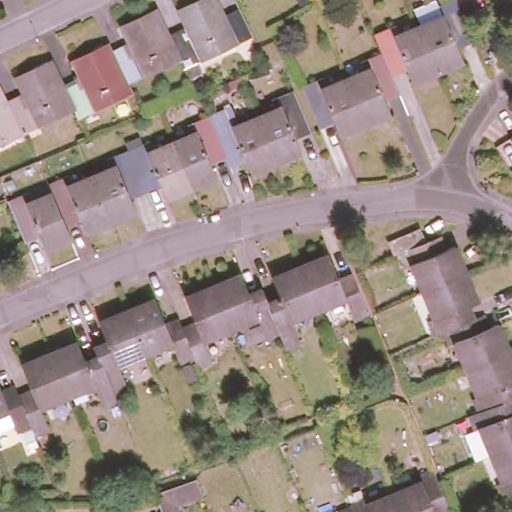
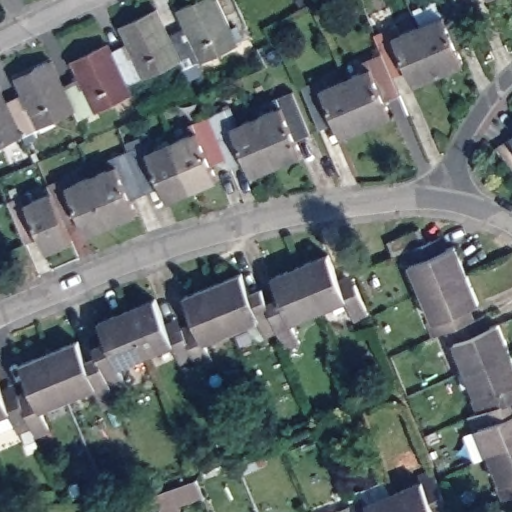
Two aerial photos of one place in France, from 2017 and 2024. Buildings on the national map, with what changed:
unchanged [(178,8),(195,0),(217,0),(237,41),(184,66),(180,57),(168,32),(181,27),(186,25),(178,8)]
unchanged [(457,49),(462,63),(438,73),(419,27),(437,20),(433,10),(440,7),(455,1),(472,42),(457,49)]
unchanged [(121,25),(157,7),(168,32),(180,57),(126,83),(110,50),(124,44),(129,42),(121,25)]
unchanged [(390,29),(396,26),(400,35),(419,27),(438,73),(412,83),(408,70),(394,76),(384,53),(376,34),(390,29)]
unchanged [(75,77),(80,75),(72,58),(106,41),(110,50),(126,83),(130,92),(78,116),(74,107),(63,83),(75,77)]
unchanged [(367,71),(363,62),(368,60),(384,53),(394,76),(401,93),(385,101),(390,115),(366,125),(347,80),(367,71)]
unchanged [(14,74),(51,57),(63,83),(74,107),(21,132),(5,99),(17,94),(22,91),(14,74)]
unchanged [(335,122),(319,128),(302,87),(318,81),(324,79),(327,88),(347,80),(366,125),(340,136),(335,122)]
unchanged [(5,99),(21,132),(0,142),(0,89),(5,99)]
unchanged [(311,131),(296,138),(302,152),(278,162),(258,116),(277,108),(273,100),(279,97),(294,92),(311,131)]
unchanged [(246,160),(229,167),(226,159),(213,126),(229,120),(234,118),(237,125),(258,116),(278,162),(251,173),(246,160)]
unchanged [(216,179),(191,189),(172,143),(192,135),(188,126),(194,124),(209,118),(213,126),(226,159),(211,164),(216,179)]
unchanged [(512,135),(512,143),(509,137),(512,135)]
unchanged [(160,186),(145,192),(129,151),(144,145),(149,143),(153,151),(172,143),(191,189),(165,200),(160,186)]
unchanged [(135,212),(111,222),(92,176),(111,169),(107,159),(113,157),(129,151),(145,192),(130,198),(135,212)]
unchanged [(63,178),(69,176),(73,184),(92,176),(111,222),(86,233),(80,219),(66,226),(53,193),(49,184),(63,178)]
unchanged [(66,226),(71,239),(45,250),(40,237),(25,243),(8,201),(23,195),(29,193),(32,201),(53,193),(66,226)]
unchanged [(410,277),(404,260),(397,263),(392,251),(424,237),(429,250),(435,247),(445,243),(452,259),(461,255),(472,281),(429,300),(418,274),(410,277)]
unchanged [(357,315),(347,293),(318,306),(298,263),(328,250),(333,262),(338,273),(350,267),(355,278),(369,310),(357,315)]
unchanged [(288,346),(279,326),(268,331),(261,315),(232,328),(211,282),(240,269),(247,284),(249,289),(261,285),(264,292),(268,301),(283,295),(279,286),(273,274),(298,263),(318,306),(293,317),(303,339),(288,346)]
unchanged [(440,342),(434,330),(440,327),(429,300),(472,281),(484,308),(477,312),(482,324),(492,319),(498,334),(508,330),(512,341),(512,359),(475,375),(464,349),(458,351),(452,337),(440,342)]
unchanged [(199,360),(194,350),(183,354),(175,337),(146,350),(126,306),(156,293),(162,309),(166,317),(177,312),(182,322),(198,316),(193,305),(187,292),(211,282),(232,328),(208,339),(215,353),(199,360)]
unchanged [(105,398),(99,383),(72,395),(52,349),(78,338),(85,352),(88,358),(100,353),(97,346),(95,343),(109,337),(106,331),(101,317),(126,306),(146,350),(120,362),(127,378),(113,383),(117,392),(105,398)]
unchanged [(5,387),(17,381),(21,391),(34,385),(30,376),(23,362),(52,349),(72,395),(44,407),(50,421),(38,427),(35,420),(23,426),(20,421),(0,430),(0,377),(5,387)]
unchanged [(494,434),(488,436),(482,421),(487,419),(481,405),(487,402),(475,375),(512,359),(512,408),(511,408),(512,411),(512,455),(505,458),(494,434)]
unchanged [(512,455),(512,475),(505,458),(512,455)]
unchanged [(417,486),(415,482),(428,477),(441,506),(443,512),(395,512),(389,498),(417,486)]
unchanged [(201,479),(208,493),(201,496),(183,504),(186,512),(169,512),(161,495),(195,481),(201,479)]
unchanged [(363,504),(364,508),(389,498),(395,512),(347,512),(347,511),(363,504)]

